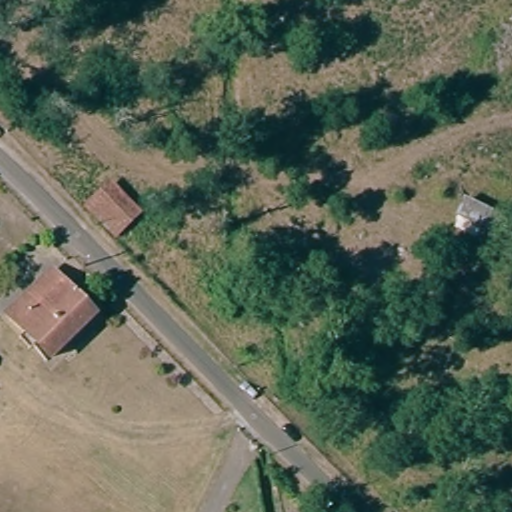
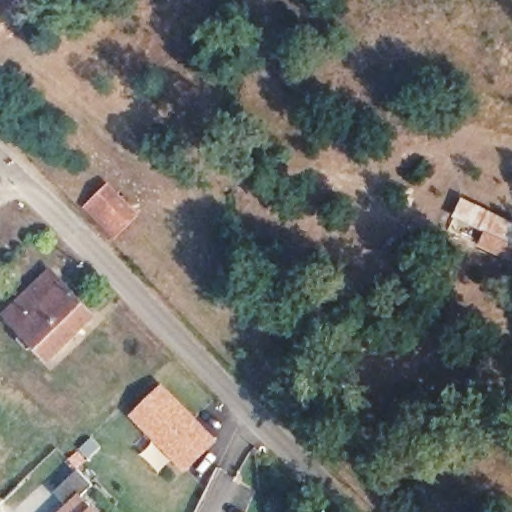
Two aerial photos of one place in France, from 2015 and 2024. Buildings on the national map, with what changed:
unchanged [(114,233),(97,216),(87,206),(108,185),(119,195),(136,211),(114,233)]
unchanged [(512,224),(512,242),(452,215),(461,199),(512,224)]
unchanged [(49,360),(8,316),(20,305),(50,276),(60,287),(91,320),(49,360)]
new [(131,416),(164,384),(219,441),(185,473),(131,416)]
new [(68,506),(54,491),(77,468),(92,483),(79,496),(95,512),(61,512),(68,506)]

